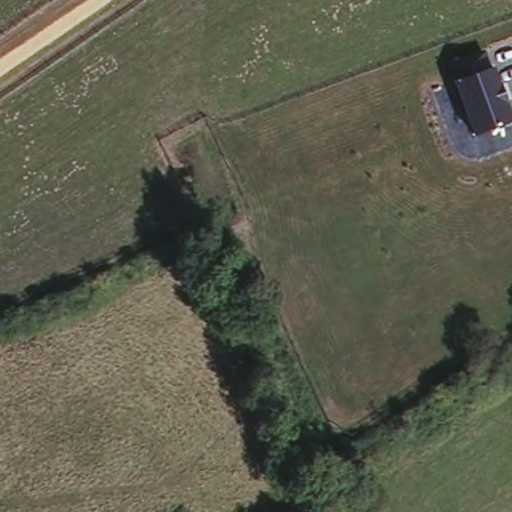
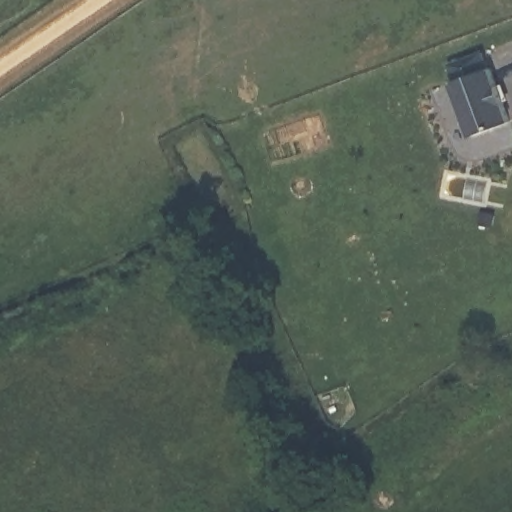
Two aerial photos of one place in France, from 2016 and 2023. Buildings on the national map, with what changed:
unchanged [(512,114),(512,125),(473,140),(446,62),(485,49),(512,114)]

